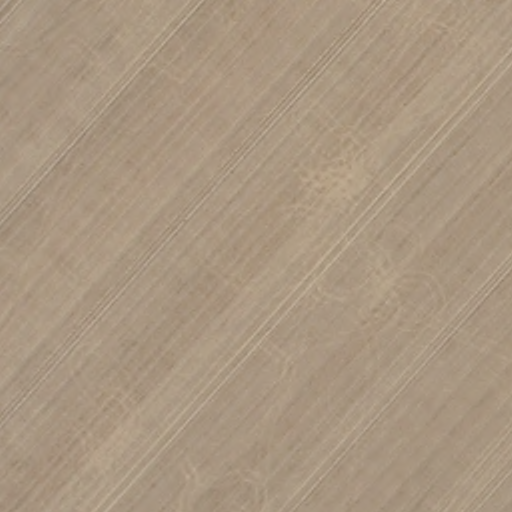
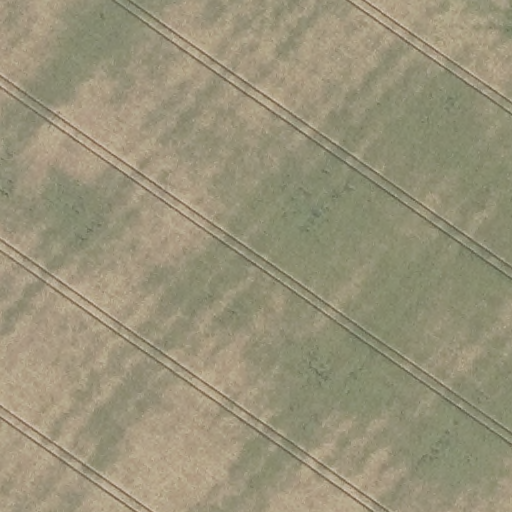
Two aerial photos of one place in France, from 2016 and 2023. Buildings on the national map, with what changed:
[]

